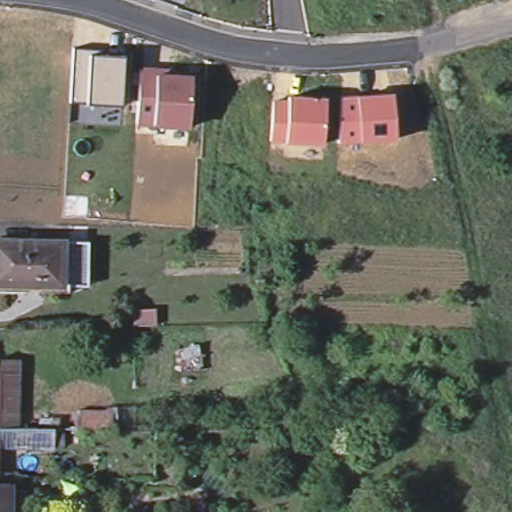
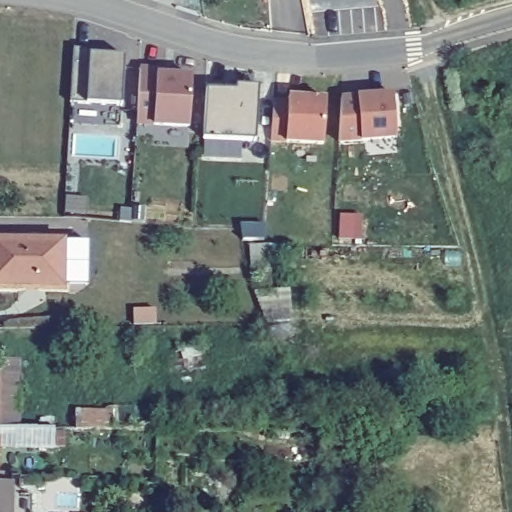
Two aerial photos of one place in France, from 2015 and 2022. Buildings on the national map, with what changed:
unchanged [(100,50),(99,56),(126,57),(123,105),(71,102),(74,48),(100,50)]
unchanged [(173,68),(173,73),(195,74),(192,131),(136,126),(141,66),(173,68)]
new [(207,89),(235,91),(235,85),(258,87),(254,141),(205,139),(207,89)]
unchanged [(395,92),(399,139),(340,145),(343,97),(395,92)]
unchanged [(291,99),(292,95),(328,97),(325,146),(271,144),(274,98),(291,99)]
unchanged [(63,239),(63,290),(0,290),(0,238),(63,239)]
unchanged [(2,430),(0,429),(0,373),(2,373),(2,362),(25,362),(24,430),(2,430)]
unchanged [(81,436),(82,418),(118,420),(118,437),(81,436)]
unchanged [(2,430),(2,452),(1,475),(14,475),(14,478),(13,485),(12,512),(0,512),(0,429),(2,430)]
unchanged [(24,430),(55,430),(54,453),(2,452),(2,430),(24,430)]

